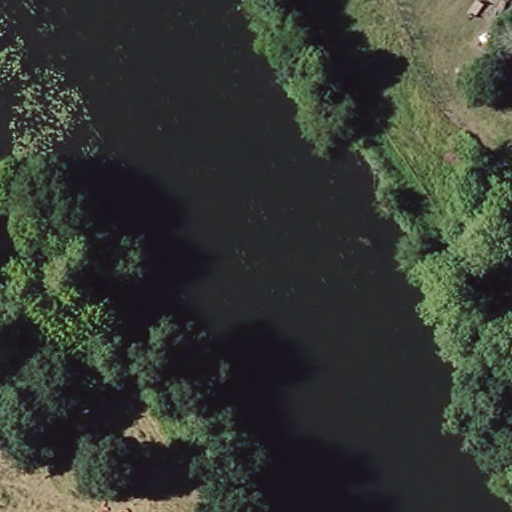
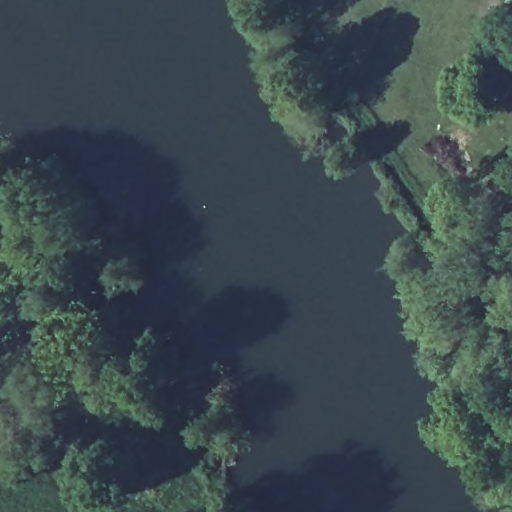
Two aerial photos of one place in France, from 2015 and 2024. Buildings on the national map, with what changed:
[]

